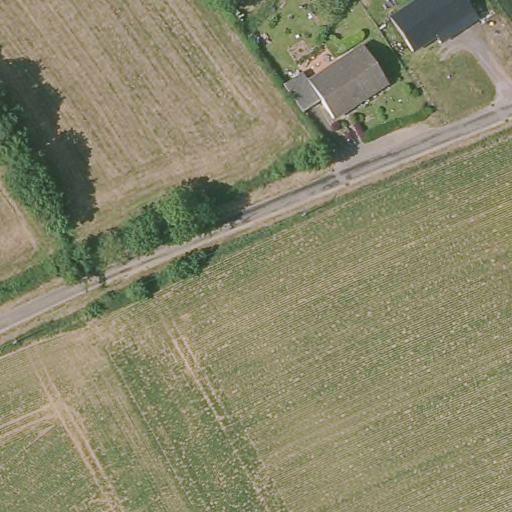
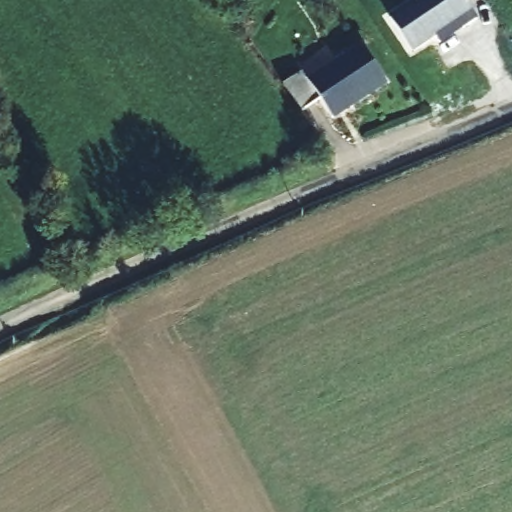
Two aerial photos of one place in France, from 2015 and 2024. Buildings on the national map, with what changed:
unchanged [(459,0),(472,15),(457,28),(452,22),(414,53),(386,20),(410,0),(459,0)]
unchanged [(300,72),(307,82),(357,46),(385,79),(335,118),(321,103),(300,121),(275,88),(300,72)]

